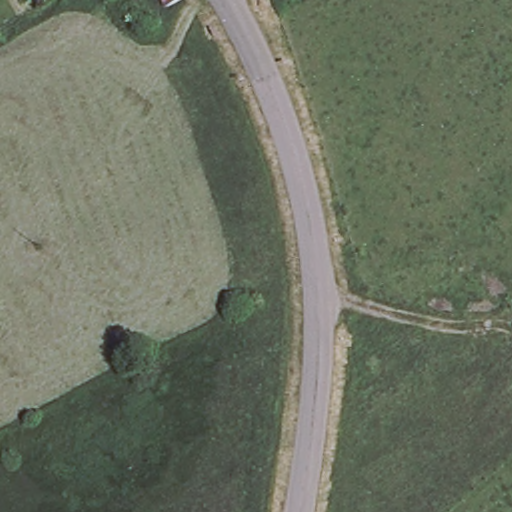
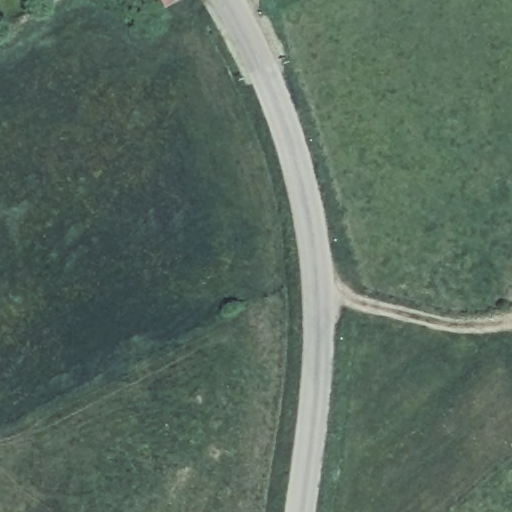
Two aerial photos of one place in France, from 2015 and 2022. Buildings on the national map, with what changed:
unchanged [(160,0),(163,0),(161,1),(160,0)]

